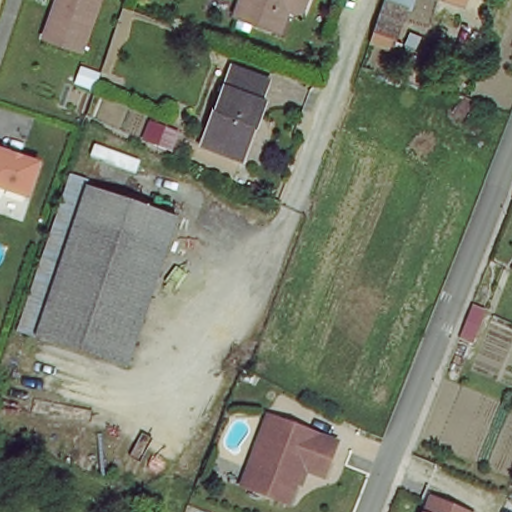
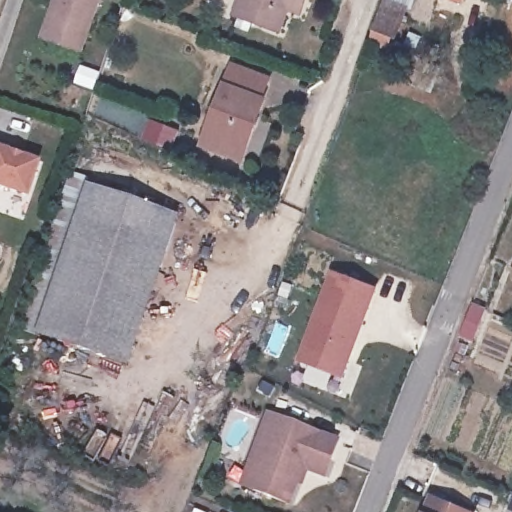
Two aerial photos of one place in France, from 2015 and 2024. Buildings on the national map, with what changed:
unchanged [(46,36),(58,0),(101,0),(85,49),(46,36)]
unchanged [(289,24),(243,10),(246,0),(310,0),(308,6),(296,3),(289,24)]
unchanged [(380,16),(385,0),(409,0),(396,36),(376,28),(380,16)]
unchanged [(440,0),(473,0),(470,11),(440,0)]
unchanged [(259,100),(263,102),(238,163),(201,149),(230,68),(266,81),(259,100)]
unchanged [(0,183),(0,149),(38,162),(27,193),(0,183)]
unchanged [(21,331),(28,310),(63,207),(71,182),(89,188),(78,219),(67,252),(40,337),(21,331)]
unchanged [(89,188),(179,218),(168,249),(78,219),(89,188)]
unchanged [(281,204),(278,212),(270,209),(274,200),(281,204)]
unchanged [(168,249),(156,286),(128,367),(70,348),(40,337),(67,252),(78,219),(168,249)]
new [(374,292),(343,379),(300,362),(331,276),(374,292)]
unchanged [(486,312),(473,344),(459,339),(462,330),(470,311),(472,306),(486,312)]
unchanged [(301,467),(296,482),(291,480),(284,501),(244,486),(237,484),(248,453),(263,413),(333,439),(321,470),(319,474),(301,467)]
unchanged [(429,495),(469,511),(469,512),(422,512),(429,495)]

